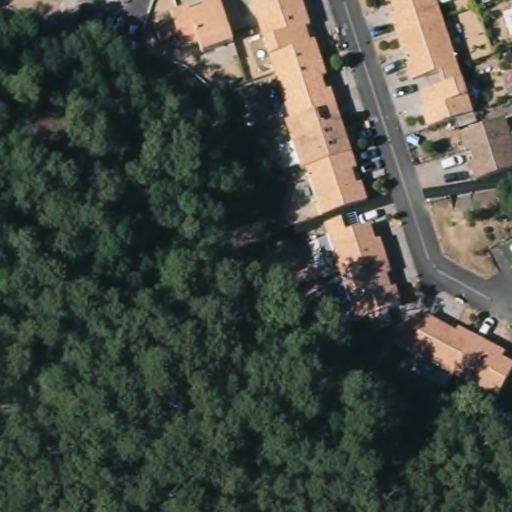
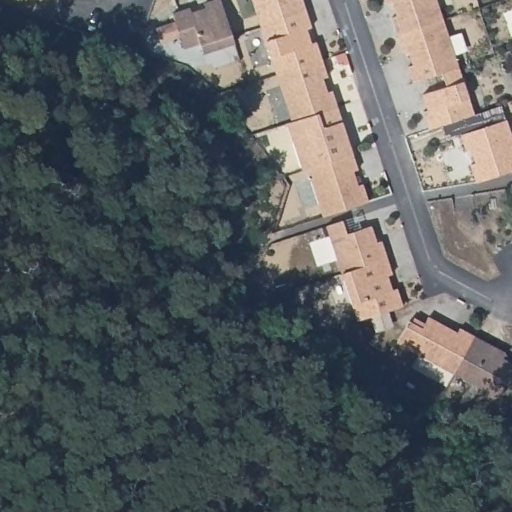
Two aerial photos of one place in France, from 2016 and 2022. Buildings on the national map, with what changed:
unchanged [(187,5),(189,10),(203,5),(202,0),(219,0),(230,33),(232,40),(201,50),(197,40),(181,45),(177,33),(158,40),(154,25),(172,19),(170,11),(187,5)]
unchanged [(246,0),(296,0),(298,9),(254,24),(246,0)]
unchanged [(390,14),(395,13),(390,0),(435,0),(441,17),(396,32),(390,14)]
unchanged [(298,9),(303,24),(299,26),(304,41),(308,39),(314,57),(269,71),(254,24),(298,9)]
unchanged [(441,17),(456,65),(440,70),(411,79),(406,64),(411,62),(406,48),(401,49),(396,32),(441,17)]
unchanged [(314,57),(320,74),(315,76),(320,90),(325,88),(330,104),(285,119),(269,71),(314,57)]
unchanged [(456,65),(472,112),(427,127),(421,110),(426,108),(421,92),(444,85),(440,70),(456,65)]
unchanged [(280,121),(285,119),(330,104),(346,152),(301,167),(298,167),(296,168),(280,121)]
unchanged [(503,118),(512,144),(512,167),(474,180),(468,163),(473,161),(468,147),(463,149),(458,133),(503,118)]
unchanged [(346,152),(351,167),(346,169),(351,184),(355,182),(361,200),(352,203),(320,213),(316,214),(301,167),(346,152)]
unchanged [(319,224),(322,223),(335,219),(340,232),(363,224),(369,241),(374,239),(380,257),(335,271),(319,224)]
unchanged [(368,326),(365,315),(350,319),(335,271),(380,257),(385,272),(380,274),(385,289),(390,287),(395,304),(380,310),(383,321),(368,326)]
unchanged [(395,341),(407,319),(409,320),(411,316),(422,322),(426,315),(455,331),(457,327),(472,335),(452,372),(395,341)]
unchanged [(503,352),(500,357),(512,363),(512,366),(492,402),(477,393),(480,387),(452,372),(472,335),(503,352)]

